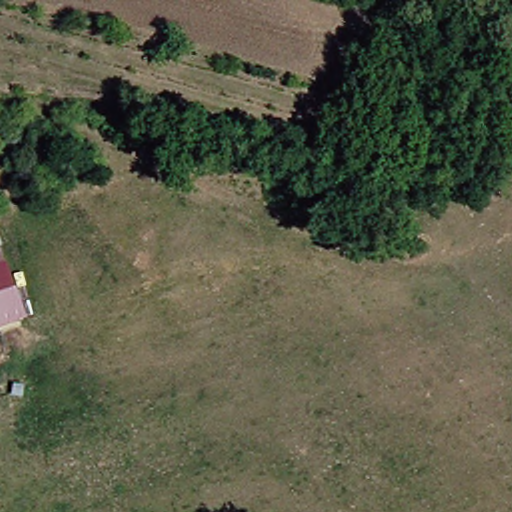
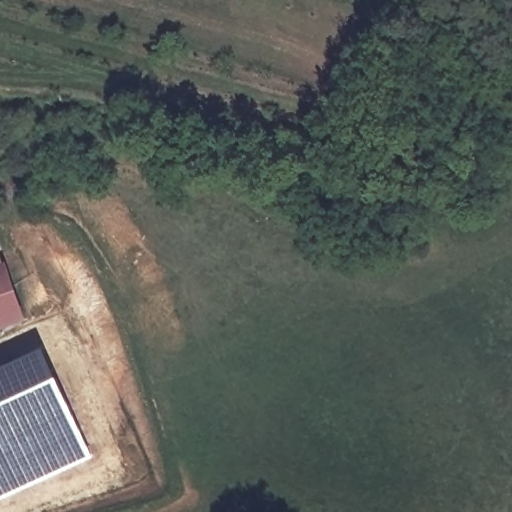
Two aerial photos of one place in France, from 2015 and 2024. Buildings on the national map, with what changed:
new [(5,262),(25,321),(0,330),(0,264),(5,262)]
new [(42,346),(93,457),(0,499),(0,365),(42,346)]

